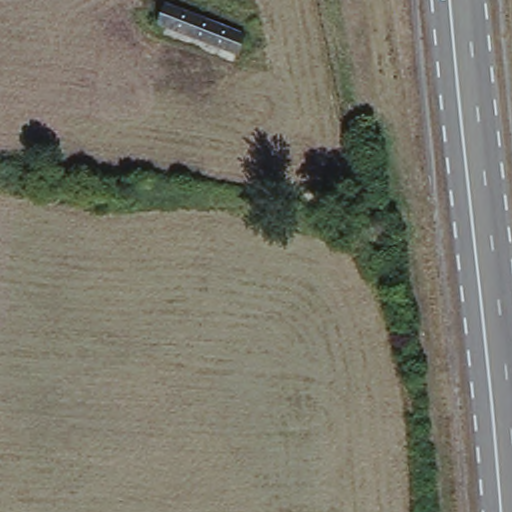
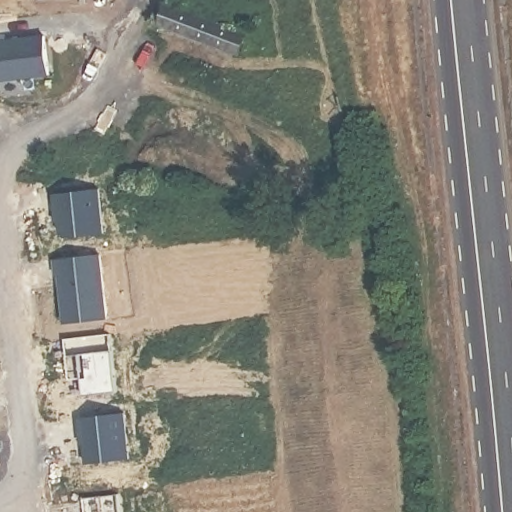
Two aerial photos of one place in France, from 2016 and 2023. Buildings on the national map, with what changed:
unchanged [(242,53),(164,25),(171,7),(249,35),(242,53)]
new [(43,36),(48,75),(0,80),(0,41),(43,36)]
new [(96,190),(101,234),(63,237),(59,234),(56,211),(53,211),(51,195),(96,190)]
new [(98,256),(105,320),(64,325),(58,276),(55,277),(53,261),(98,256)]
new [(110,335),(116,393),(82,397),(77,356),(65,357),(63,341),(110,335)]
new [(123,415),(128,461),(85,466),(82,436),(79,436),(77,420),(123,415)]

